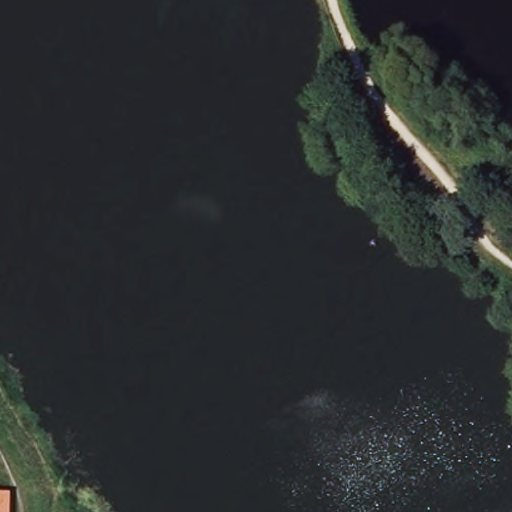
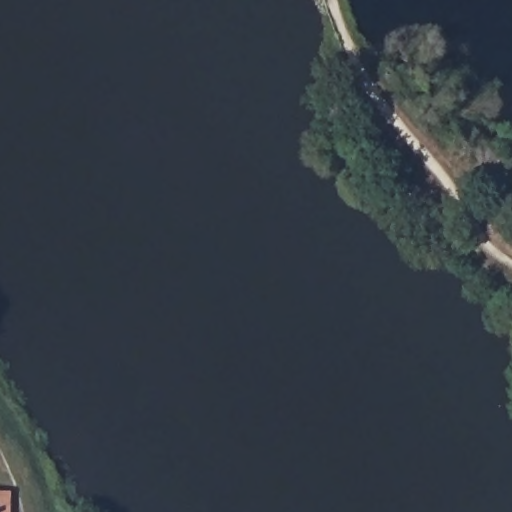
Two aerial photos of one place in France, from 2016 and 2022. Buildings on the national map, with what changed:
[]

